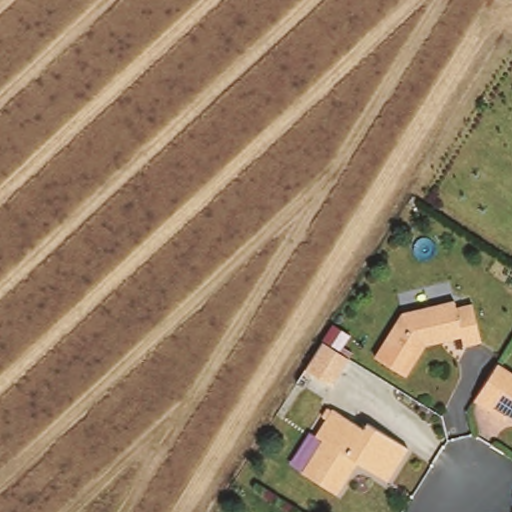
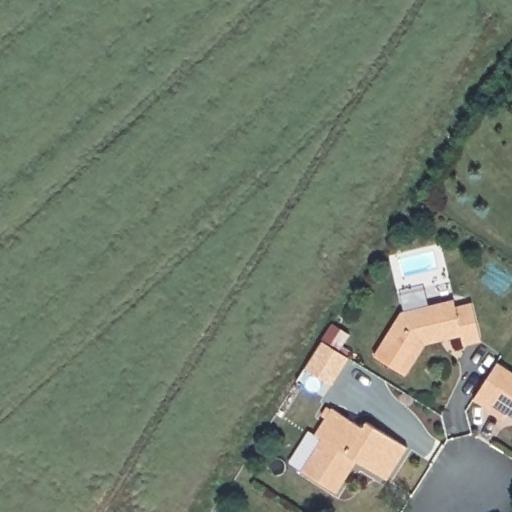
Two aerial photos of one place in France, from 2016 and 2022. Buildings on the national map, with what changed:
unchanged [(367,360),(395,316),(447,304),(449,312),(465,307),(474,346),(456,350),(455,340),(417,348),(398,379),(367,360)]
unchanged [(301,368),(318,342),(345,358),(328,385),(301,368)]
unchanged [(487,408),(510,372),(512,372),(512,416),(505,412),(501,417),(487,408)]
unchanged [(356,426),(360,420),(400,446),(380,477),(350,458),(330,491),(295,470),(315,437),(308,433),(325,407),(356,426)]

